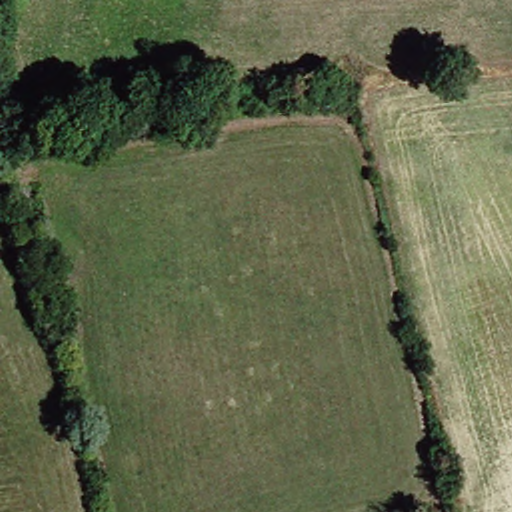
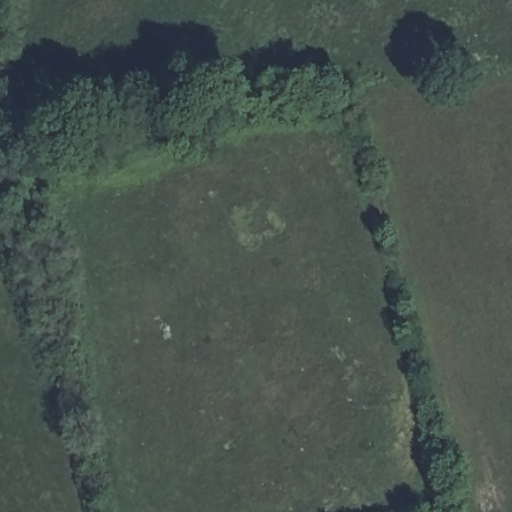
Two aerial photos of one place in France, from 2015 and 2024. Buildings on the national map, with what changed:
[]

